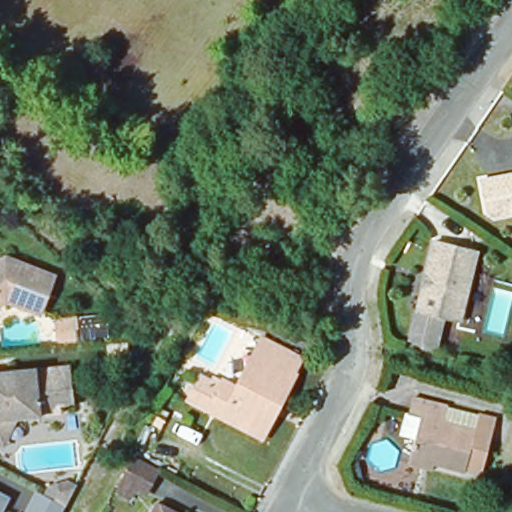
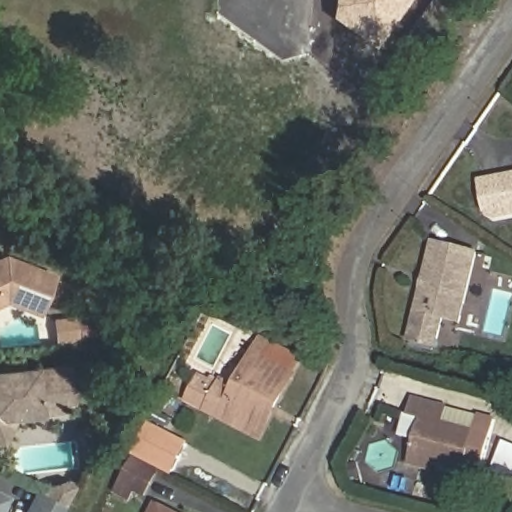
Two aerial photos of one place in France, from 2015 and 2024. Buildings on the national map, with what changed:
new [(410,0),(377,48),(332,16),(333,0),(410,0)]
unchanged [(495,220),(488,215),(482,184),(512,178),(512,217),(495,220)]
unchanged [(435,242),(478,252),(461,321),(418,311),(424,289),(427,274),(435,242)]
unchanged [(53,280),(37,316),(5,303),(0,304),(0,262),(6,259),(53,280)]
unchanged [(438,350),(406,343),(412,312),(446,320),(438,350)]
unchanged [(53,320),(76,317),(79,343),(56,347),(53,320)]
unchanged [(302,361),(262,439),(209,413),(224,385),(238,391),(264,343),(302,361)]
unchanged [(0,374),(69,367),(74,407),(60,409),(61,417),(40,419),(18,422),(3,451),(0,449),(0,374)]
unchanged [(222,384),(207,412),(189,403),(204,375),(222,384)]
unchanged [(413,464),(415,458),(424,416),(412,413),(416,400),(451,409),(448,426),(478,433),(468,471),(438,464),(436,469),(413,464)]
new [(188,442),(172,475),(131,455),(150,422),(188,442)]
unchanged [(159,474),(146,498),(135,493),(130,502),(115,494),(133,460),(159,474)]
unchanged [(35,492),(41,495),(46,488),(69,482),(78,486),(63,512),(25,512),(35,492)]
unchanged [(0,509),(0,496),(6,499),(0,509)]
unchanged [(167,512),(155,512),(158,507),(167,512)]

